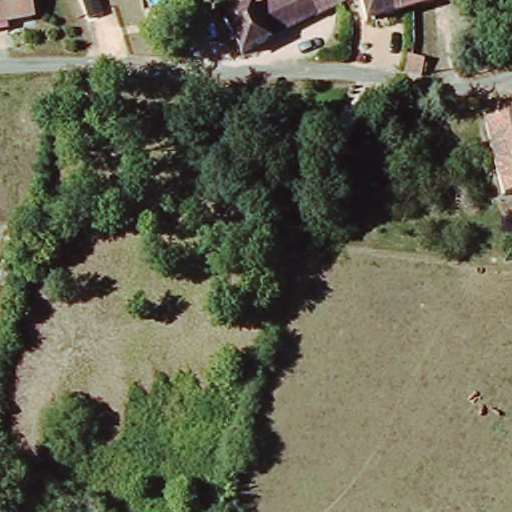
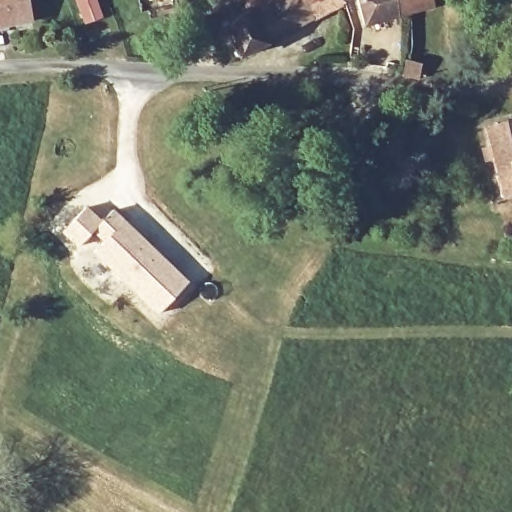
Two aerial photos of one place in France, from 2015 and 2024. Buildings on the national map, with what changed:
unchanged [(28,21),(0,26),(0,0),(25,0),(28,21)]
unchanged [(343,1),(239,55),(220,21),(245,8),(249,14),(274,0),(343,0),(343,1)]
unchanged [(371,24),(363,0),(397,0),(401,13),(371,24)]
unchanged [(401,13),(397,0),(434,0),(434,3),(413,10),(401,13)]
unchanged [(403,50),(417,52),(416,70),(399,66),(403,50)]
unchanged [(512,191),(505,193),(481,125),(512,115),(512,191)]
new [(93,254),(104,243),(92,232),(115,208),(188,281),(156,314),(93,254)]

